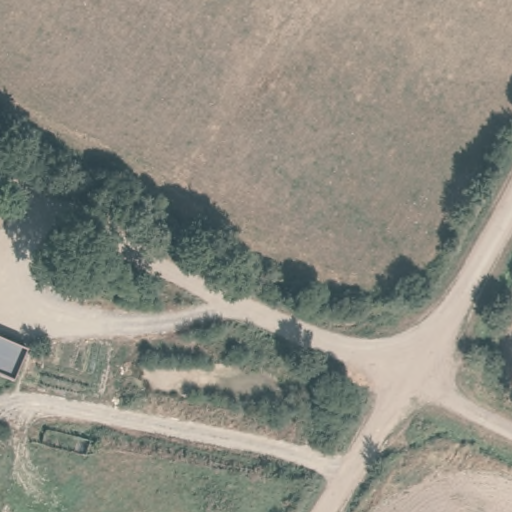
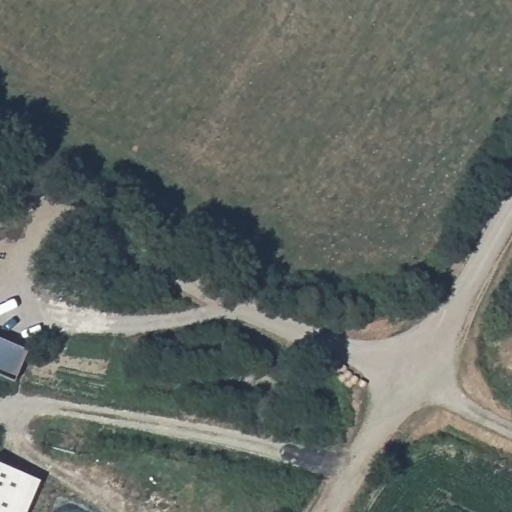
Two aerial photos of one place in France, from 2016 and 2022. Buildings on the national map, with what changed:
unchanged [(14,382),(0,376),(0,339),(28,351),(14,382)]
unchanged [(309,371),(315,374),(312,381),(305,378),(309,371)]
new [(26,512),(0,512),(0,463),(39,481),(26,512)]

